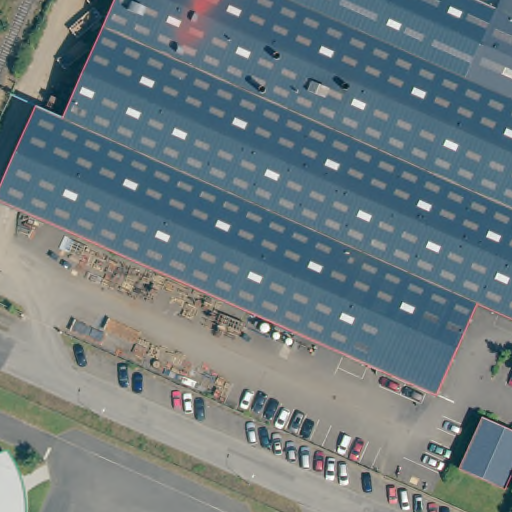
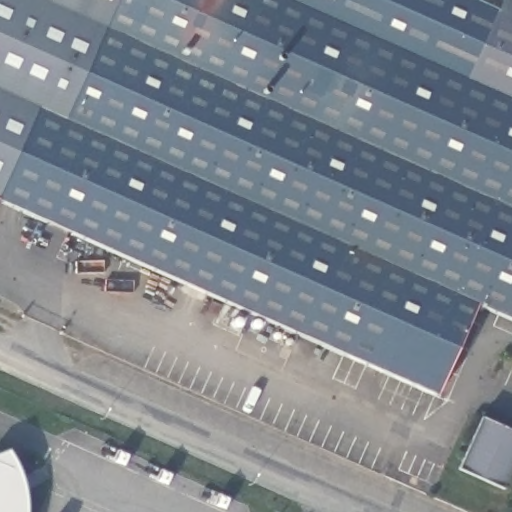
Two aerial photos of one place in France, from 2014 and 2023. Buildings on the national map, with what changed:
new [(62,118),(35,107),(0,187),(0,0),(116,0),(62,118)]
unchanged [(477,301),(433,396),(0,203),(0,187),(35,107),(62,118),(116,0),(467,0),(490,10),(512,20),(512,317),(477,301)]
unchanged [(495,0),(512,0),(512,20),(490,10),(495,0)]
unchanged [(512,434),(512,471),(505,490),(459,469),(480,419),(512,434)]
unchanged [(14,476),(17,486),(20,498),(20,509),(20,512),(0,512),(0,468),(10,472),(14,476)]

